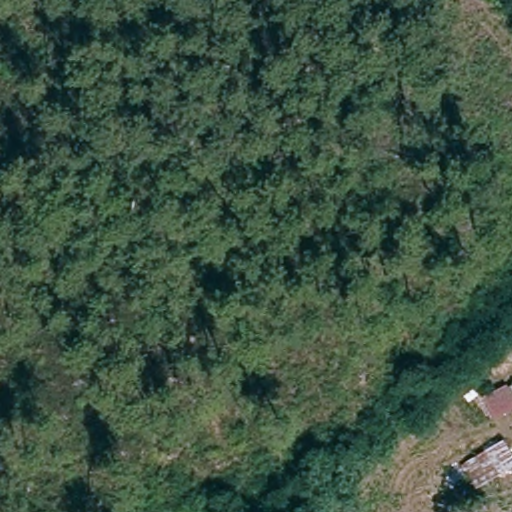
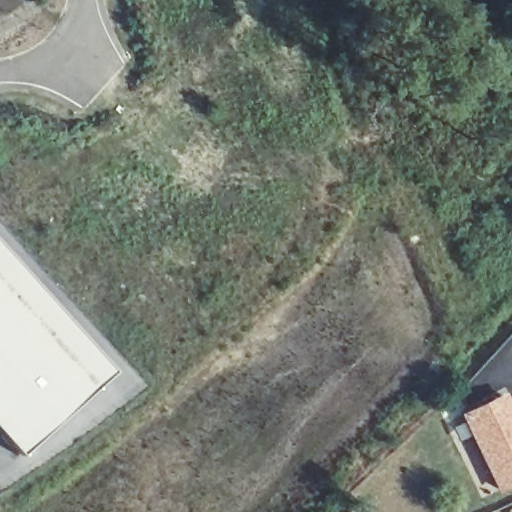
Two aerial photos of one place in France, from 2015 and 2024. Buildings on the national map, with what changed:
new [(110,372),(17,454),(0,435),(0,247),(110,372)]
new [(512,486),(497,494),(458,414),(503,393),(512,411),(512,486)]

